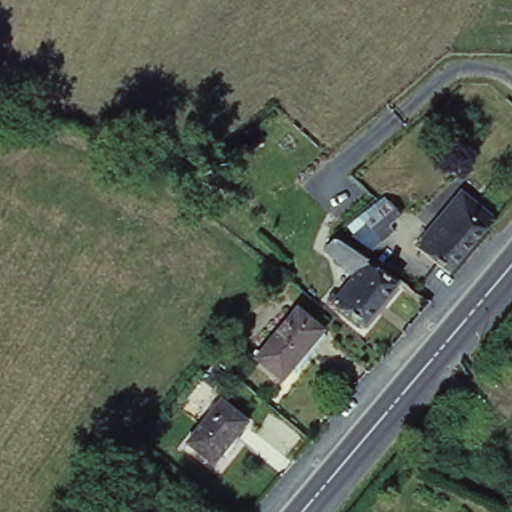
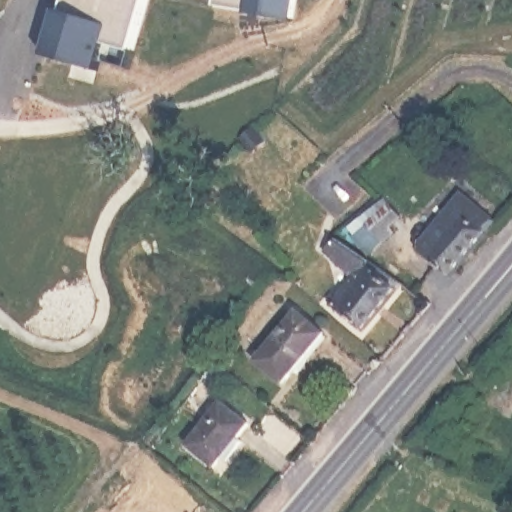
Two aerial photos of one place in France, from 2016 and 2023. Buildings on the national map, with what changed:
new [(140,44),(113,37),(97,72),(49,57),(65,0),(152,0),(140,44)]
new [(295,15),(217,3),(217,0),(296,0),(295,15)]
unchanged [(416,245),(452,205),(441,196),(457,180),(495,210),(480,226),(486,231),(483,234),(453,275),(416,245)]
unchanged [(365,225),(354,234),(347,225),(385,196),(395,211),(372,232),(365,225)]
unchanged [(373,327),(333,297),(354,272),(339,260),(326,250),(336,238),(384,271),(407,285),(373,327)]
unchanged [(258,356),(299,306),(326,327),(285,381),(258,356)]
unchanged [(190,442),(224,401),(249,421),(216,464),(190,442)]

